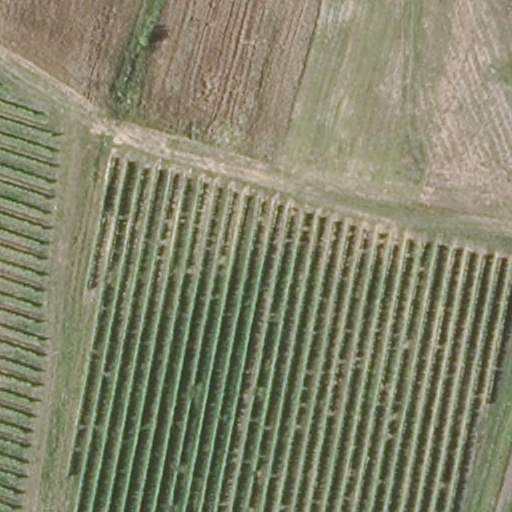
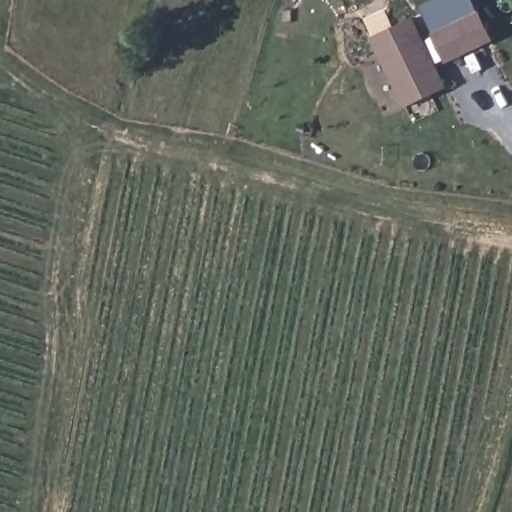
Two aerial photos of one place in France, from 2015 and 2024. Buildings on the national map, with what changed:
new [(494,42),(446,64),(432,35),(480,11),(494,42)]
new [(404,109),(370,39),(415,17),(448,87),(404,109)]

